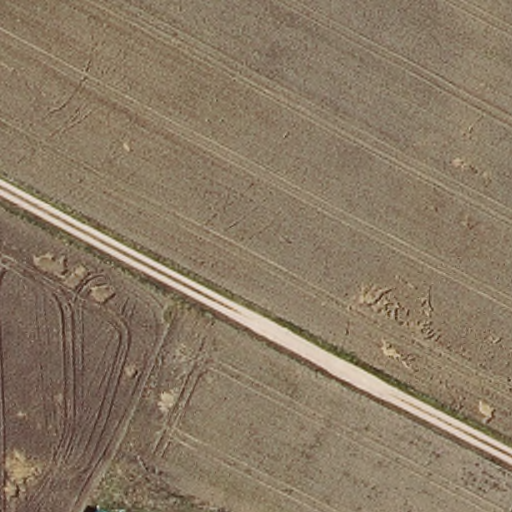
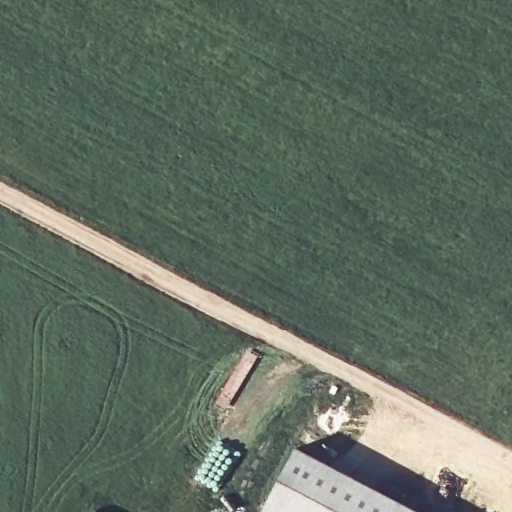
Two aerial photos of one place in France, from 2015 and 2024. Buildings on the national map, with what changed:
new [(272,512),(265,508),(298,445),(427,512),(272,512)]

